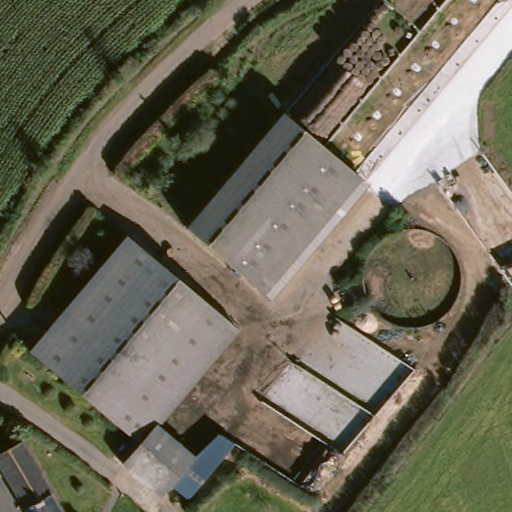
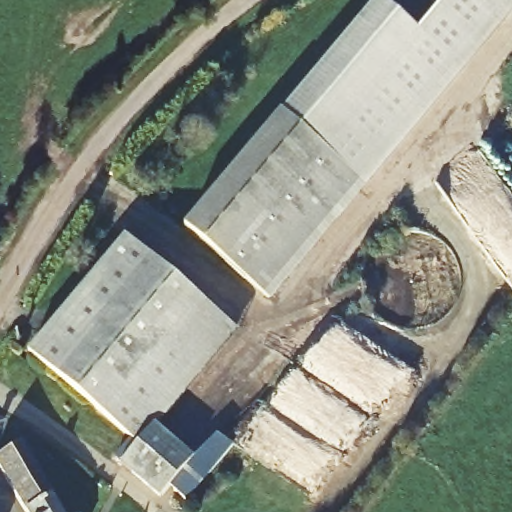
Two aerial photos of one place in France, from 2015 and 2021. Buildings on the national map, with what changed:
new [(366,190),(280,115),(377,0),(378,0),(419,33),(447,0),(512,0),(512,14),(366,190)]
unchanged [(280,115),(371,194),(275,308),(182,230),(280,115)]
unchanged [(133,240),(242,335),(159,430),(200,465),(165,507),(122,470),(138,452),(29,356),(133,240)]
unchanged [(47,503),(52,512),(17,512),(0,484),(0,444),(6,453),(17,447),(49,501),(47,503)]

